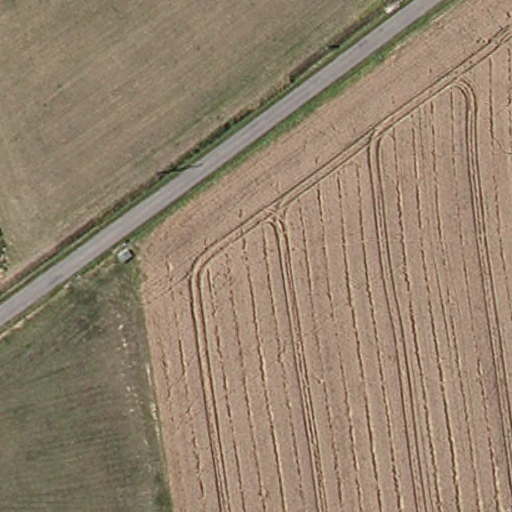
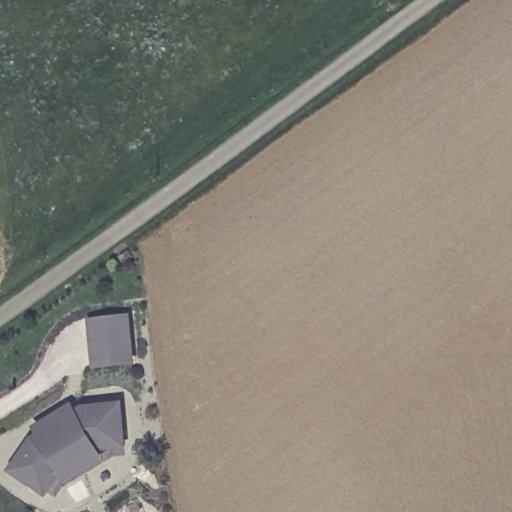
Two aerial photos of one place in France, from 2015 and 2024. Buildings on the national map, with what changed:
new [(132,315),(137,366),(95,370),(89,320),(132,315)]
new [(32,439),(38,433),(35,427),(72,404),(77,411),(84,405),(124,403),(128,450),(102,453),(106,461),(67,485),(64,477),(49,498),(10,473),(32,439)]

